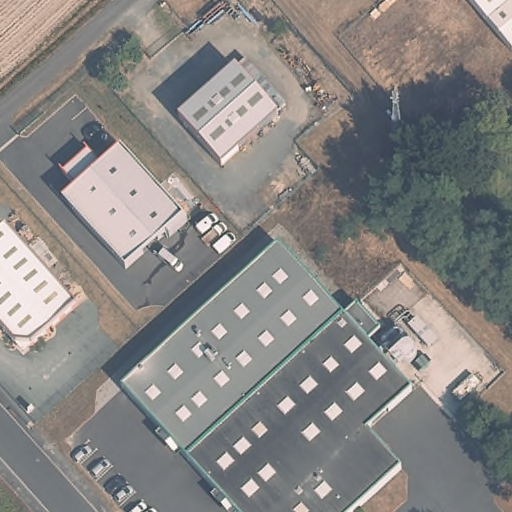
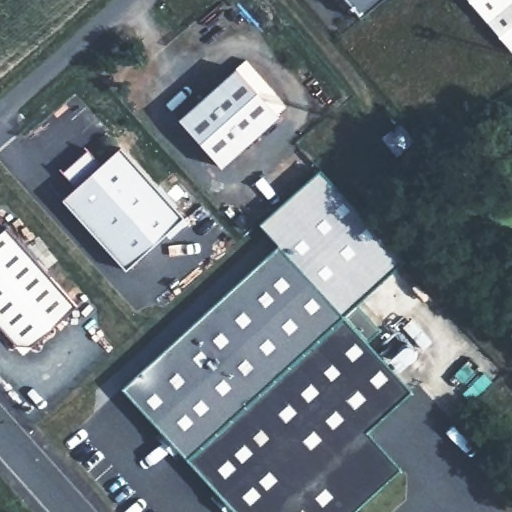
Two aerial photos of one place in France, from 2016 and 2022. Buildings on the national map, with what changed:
new [(370,17),(356,0),(389,0),(370,17)]
unchanged [(512,54),(469,0),(512,0),(512,54)]
unchanged [(288,107),(278,117),(221,168),(178,121),(236,69),(245,61),(288,107)]
unchanged [(185,218),(128,271),(62,200),(121,146),(185,218)]
new [(259,222),(320,168),(404,259),(355,302),(379,330),(367,342),(345,318),(279,245),(259,222)]
unchanged [(77,306),(32,346),(13,346),(0,331),(0,231),(5,227),(77,306)]
unchanged [(345,318),(187,460),(123,388),(279,245),(345,318)]
unchanged [(412,393),(369,432),(404,472),(358,512),(235,512),(187,460),(345,318),(412,393)]

